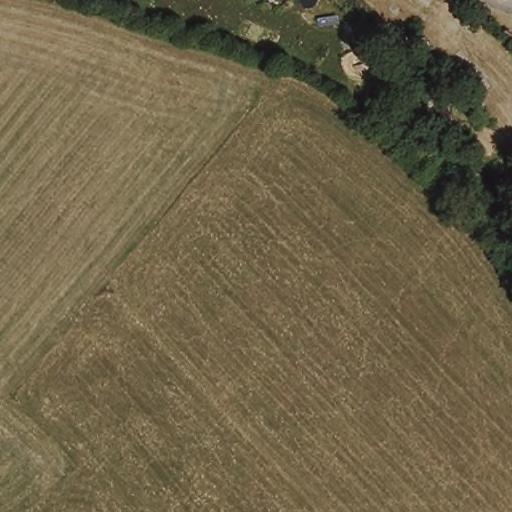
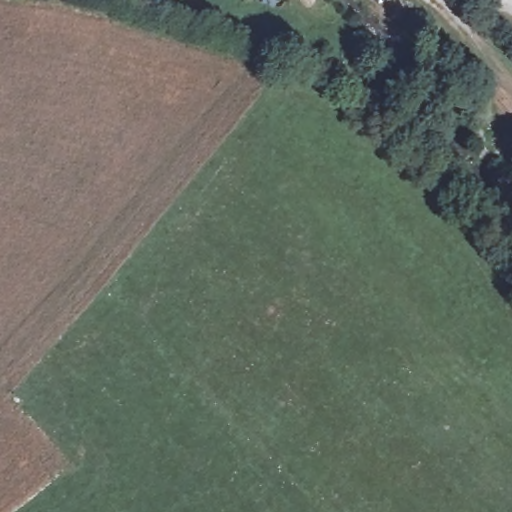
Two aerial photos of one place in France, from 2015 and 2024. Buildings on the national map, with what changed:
[]

